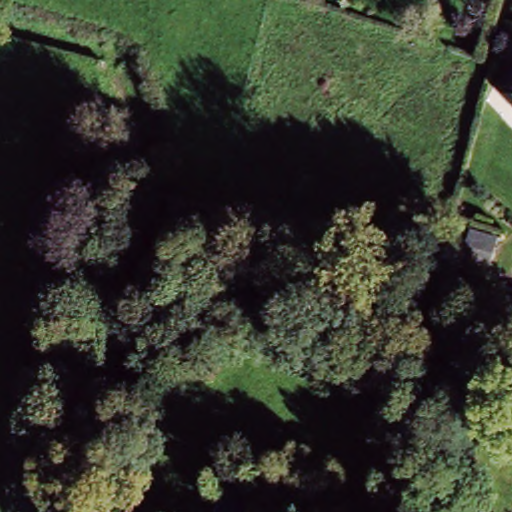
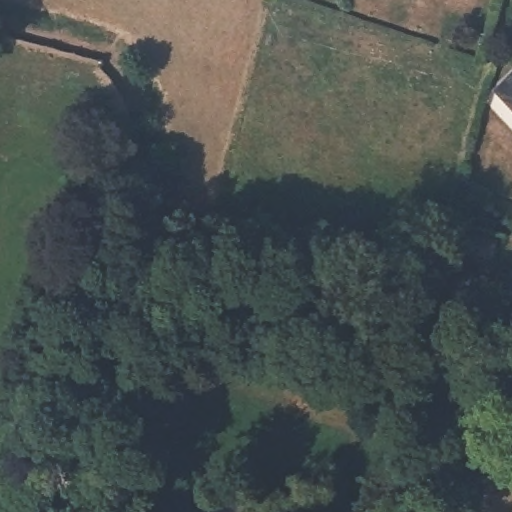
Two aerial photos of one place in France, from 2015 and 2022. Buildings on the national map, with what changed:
unchanged [(512,81),(512,107),(500,93),(512,81)]
unchanged [(220,479),(248,485),(245,512),(215,512),(220,479)]

